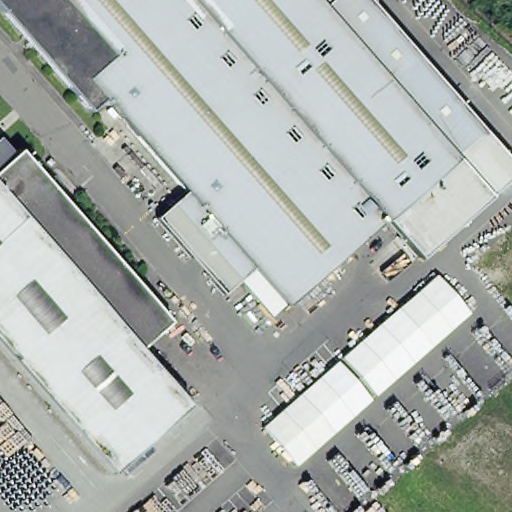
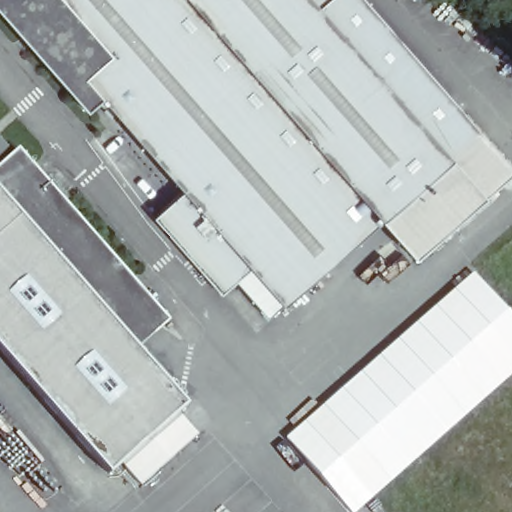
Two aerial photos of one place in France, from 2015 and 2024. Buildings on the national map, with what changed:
unchanged [(457,164),(289,311),(255,273),(189,197),(107,104),(92,116),(0,12),(0,0),(339,0),(325,13),(457,164)]
unchanged [(457,164),(325,13),(339,0),(365,0),(486,138),(457,164)]
new [(486,138),(512,169),(512,179),(412,261),(384,228),(457,164),(486,138)]
unchanged [(109,474),(0,350),(0,165),(17,149),(168,322),(137,349),(187,405),(109,474)]
unchanged [(240,286),(174,209),(189,197),(255,273),(240,286)]
new [(512,379),(361,512),(348,512),(281,439),(472,274),(512,317),(512,379)]

